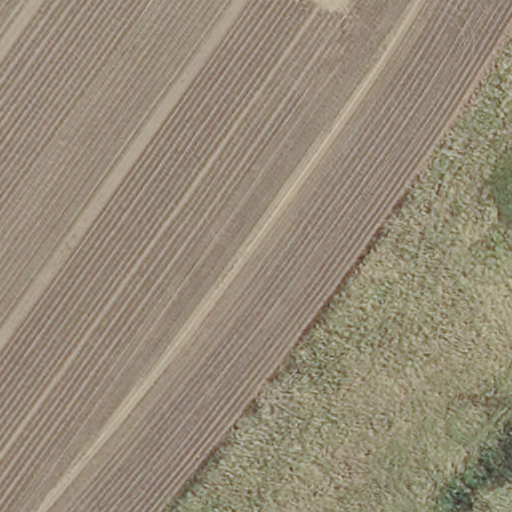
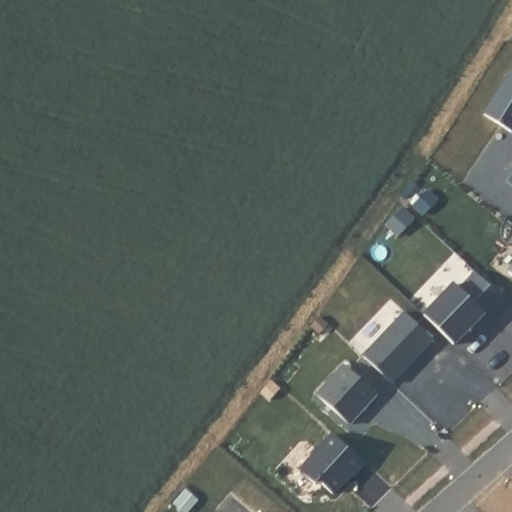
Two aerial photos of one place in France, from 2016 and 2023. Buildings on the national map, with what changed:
new [(512,74),(512,130),(486,113),(512,74)]
new [(402,208),(413,217),(400,233),(389,224),(402,208)]
new [(512,270),(512,277),(509,274),(512,270)]
new [(454,285),(459,290),(474,273),(503,300),(476,329),(472,325),(453,344),(424,316),(454,285)]
new [(406,308),(434,335),(393,380),(364,353),(406,308)]
new [(343,366),(376,395),(349,425),(317,396),(343,366)]
new [(302,467),(331,435),(364,464),(353,476),(350,473),(332,494),(320,483),(314,485),(298,471),(302,467)]

